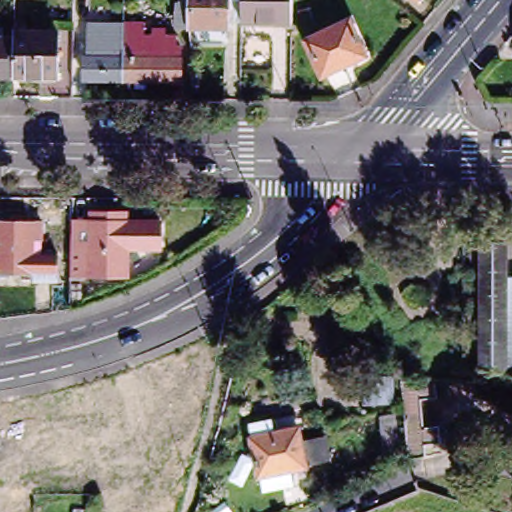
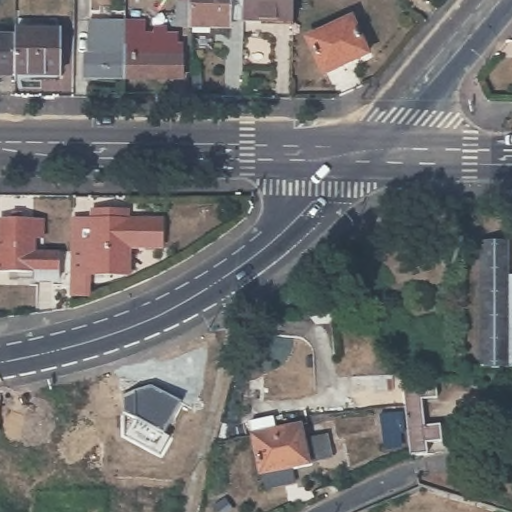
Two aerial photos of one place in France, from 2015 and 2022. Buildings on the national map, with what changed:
unchanged [(177,4),(181,4),(181,0),(243,0),(243,24),(229,23),(229,30),(191,29),(191,30),(177,30),(177,4)]
unchanged [(292,24),(243,24),(243,0),(292,0),(292,24)]
unchanged [(421,0),(426,0),(424,3),(421,0)]
unchanged [(351,22),(367,58),(323,78),(306,42),(351,22)]
unchanged [(181,80),(124,80),(89,79),(90,26),(125,26),(125,24),(145,25),(145,39),(154,39),(155,31),(167,31),(167,39),(178,39),(178,51),(182,51),(181,80)]
unchanged [(15,29),(15,32),(58,33),(57,79),(15,78),(0,78),(0,29),(15,29)]
unchanged [(2,200),(2,229),(0,229),(0,200),(2,200)]
unchanged [(38,278),(38,270),(0,270),(0,253),(3,253),(4,219),(17,219),(17,214),(27,214),(27,219),(38,219),(48,219),(48,236),(38,236),(38,252),(62,252),(62,278),(38,278)]
unchanged [(78,225),(97,225),(97,214),(122,214),(132,214),(132,225),(134,225),(167,225),(166,250),(131,250),(131,276),(88,276),(88,275),(77,275),(77,258),(78,225)]
unchanged [(508,242),(508,278),(508,369),(481,369),(481,242),(508,242)]
unchanged [(512,369),(508,369),(508,278),(512,278),(512,369)]
unchanged [(343,301),(344,310),(333,312),(332,302),(343,301)]
unchanged [(396,376),(397,403),(365,405),(364,393),(353,393),(352,378),(396,376)]
unchanged [(410,458),(409,447),(402,380),(435,382),(437,399),(421,401),(424,428),(440,426),(442,443),(426,445),(427,456),(410,458)]
new [(147,389),(178,405),(160,438),(119,417),(147,389)]
unchanged [(271,414),(274,427),(297,422),(299,435),(321,430),(327,455),(305,460),(305,461),(289,464),(292,477),(261,484),(246,419),(271,414)]
unchanged [(397,414),(402,450),(386,452),(381,416),(397,414)]
unchanged [(97,512),(85,512),(85,509),(97,509),(97,512)]

